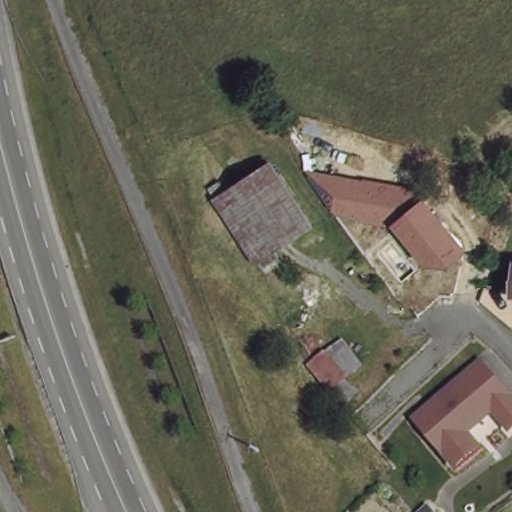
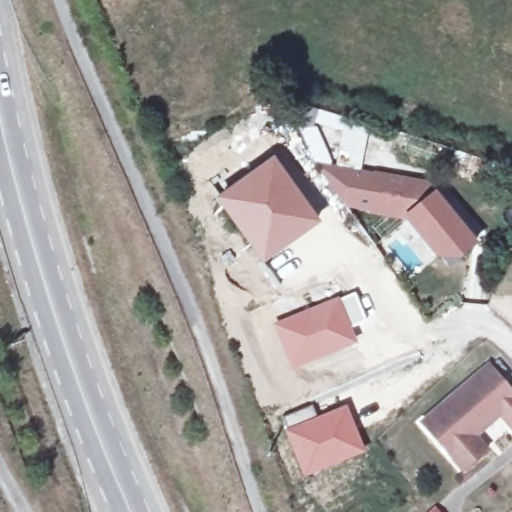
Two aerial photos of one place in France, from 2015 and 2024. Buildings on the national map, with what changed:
unchanged [(275,158),(292,184),(317,221),(263,257),(236,217),(221,194),(275,158)]
unchanged [(425,180),(480,244),(460,260),(435,262),(400,221),(341,207),(318,166),(425,180)]
new [(315,305),(356,291),(367,321),(352,327),(358,344),(291,372),(272,323),(315,305)]
unchanged [(466,466),(454,453),(425,420),(466,384),(490,362),(512,387),(512,421),(502,410),(500,412),(477,433),(488,446),(466,466)]
new [(312,404),(317,416),(347,403),(366,452),(303,477),(285,428),(287,427),(283,416),(312,404)]

